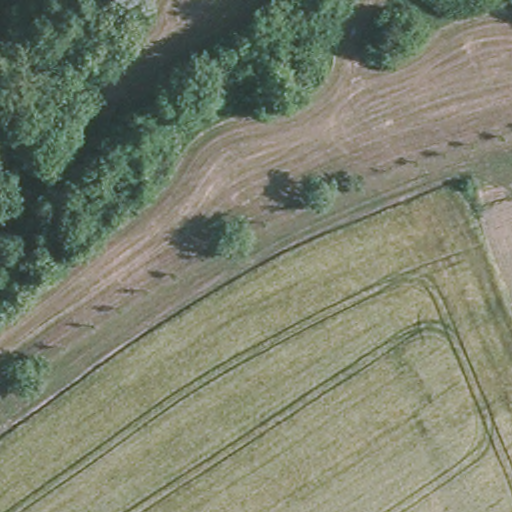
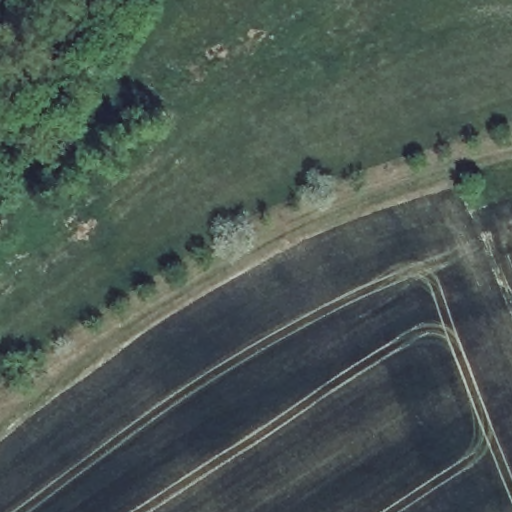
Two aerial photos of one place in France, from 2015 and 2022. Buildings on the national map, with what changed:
[]

